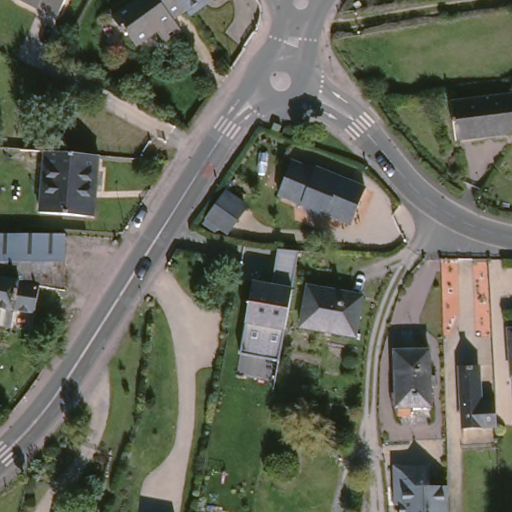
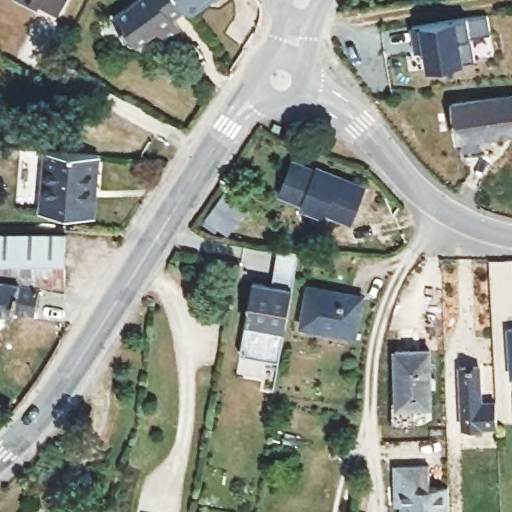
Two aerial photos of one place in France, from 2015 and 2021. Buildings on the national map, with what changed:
unchanged [(42,2),(38,0),(44,0),(42,2)]
unchanged [(64,9),(45,0),(69,0),(64,9)]
unchanged [(172,19),(180,31),(162,43),(155,33),(135,46),(127,34),(124,36),(110,17),(136,0),(180,0),(186,9),(172,19)]
unchanged [(186,9),(180,0),(204,0),(203,6),(191,15),(186,9)]
new [(415,44),(413,28),(463,20),(488,18),(491,37),(471,40),(475,63),(428,70),(425,52),(416,53),(415,44)]
unchanged [(457,97),(512,90),(512,127),(461,133),(457,97)]
unchanged [(105,147),(101,183),(96,183),(95,210),(45,205),(51,143),(104,147),(105,147)]
unchanged [(356,212),(337,206),(331,209),(315,203),(312,197),(288,189),(300,155),(323,164),(324,161),(375,178),(369,194),(362,214),(356,212)]
unchanged [(249,203),(230,228),(210,213),(229,188),(249,203)]
unchanged [(76,231),(75,286),(59,282),(54,307),(33,304),(30,321),(0,318),(0,229),(76,231)]
unchanged [(361,329),(307,319),(315,277),(369,287),(361,329)]
unchanged [(298,287),(291,325),(253,319),(259,279),(298,287)]
unchanged [(435,342),(436,400),(401,400),(401,342),(435,342)]
unchanged [(506,396),(508,421),(473,422),(470,360),(490,359),(492,397),(506,396)]
unchanged [(455,512),(407,512),(406,496),(401,496),(401,479),(402,479),(402,458),(435,457),(436,478),(455,477),(455,512)]

